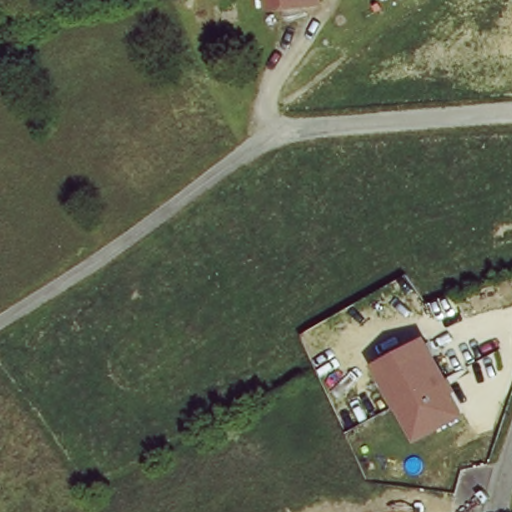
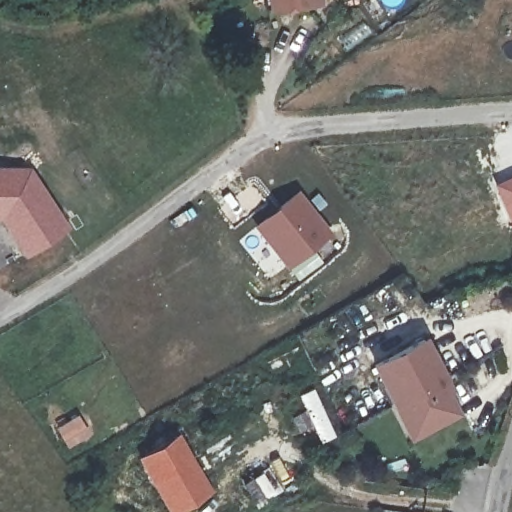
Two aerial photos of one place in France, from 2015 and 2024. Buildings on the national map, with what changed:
unchanged [(280,15),(276,0),(314,0),(316,8),(280,15)]
new [(28,166),(69,228),(24,257),(0,221),(0,165),(28,166)]
new [(493,184),(512,175),(512,224),(511,224),(493,184)]
new [(252,226),(297,189),(332,234),(289,269),(252,226)]
unchanged [(464,418),(410,444),(372,366),(424,338),(464,418)]
new [(79,414),(94,436),(70,451),(56,428),(79,414)]
new [(179,432),(216,493),(184,512),(169,512),(137,458),(179,432)]

